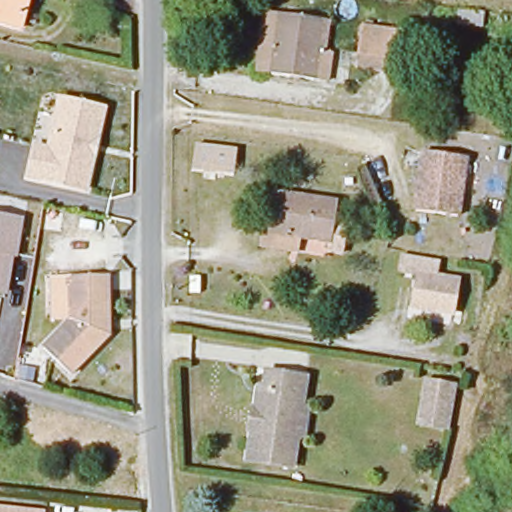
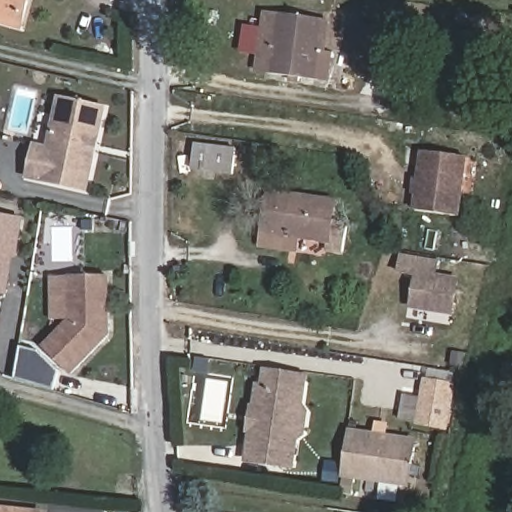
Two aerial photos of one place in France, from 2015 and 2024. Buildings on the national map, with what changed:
unchanged [(0,0),(29,0),(23,20),(20,30),(0,24),(0,0)]
unchanged [(320,23),(310,83),(269,78),(278,16),(320,23)]
unchanged [(404,65),(364,61),(368,31),(410,36),(404,65)]
unchanged [(36,150),(50,153),(61,102),(105,110),(98,143),(95,156),(88,192),(44,184),(30,180),(36,150)]
unchanged [(235,174),(192,169),(196,143),(238,148),(235,174)]
unchanged [(418,214),(424,173),(427,154),(469,161),(466,178),(460,219),(418,214)]
unchanged [(255,247),(258,233),(266,194),(329,205),(325,226),(342,229),(337,254),(320,251),(322,244),(294,239),(292,253),(255,247)]
unchanged [(0,217),(20,220),(13,255),(10,255),(3,293),(0,292),(0,217)]
unchanged [(428,284),(409,280),(412,264),(448,270),(445,285),(467,289),(462,323),(422,315),(428,284)]
unchanged [(71,374),(44,347),(71,319),(71,275),(110,275),(110,319),(110,329),(110,334),(71,374)]
unchanged [(305,438),(299,438),(295,464),(245,458),(250,429),(256,428),(258,417),(253,412),(258,384),(265,384),(266,375),(267,369),(309,374),(308,382),(304,406),(309,407),(305,438)]
unchanged [(425,423),(429,401),(432,383),(459,387),(456,405),(452,428),(425,423)]
new [(342,478),(349,429),(419,440),(412,488),(342,478)]

